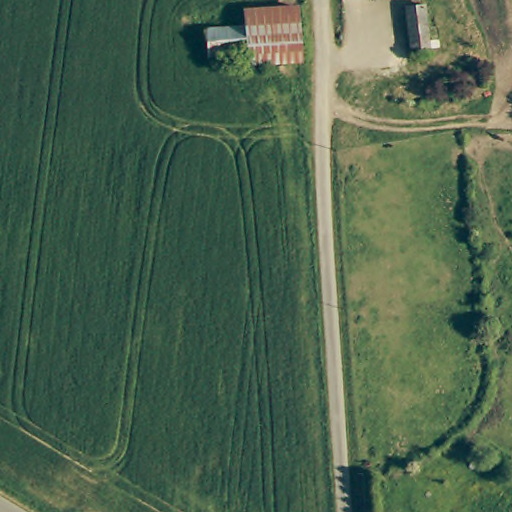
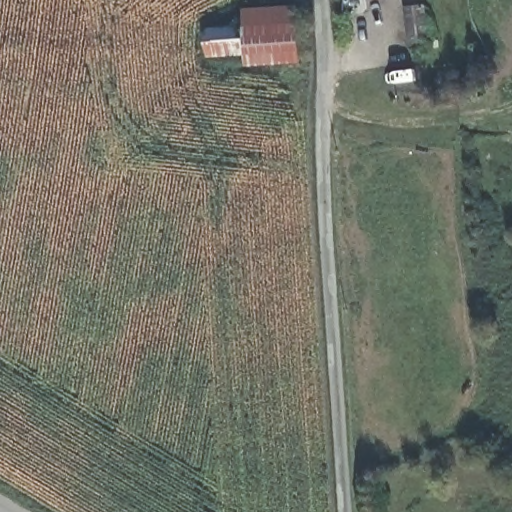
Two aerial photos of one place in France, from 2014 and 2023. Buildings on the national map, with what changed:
unchanged [(244,10),(296,7),(297,17),(301,61),(249,66),(248,56),(245,27),(244,10)]
unchanged [(427,28),(427,48),(412,51),(407,10),(424,8),(427,28)]
unchanged [(248,56),(209,57),(205,29),(245,27),(248,56)]

